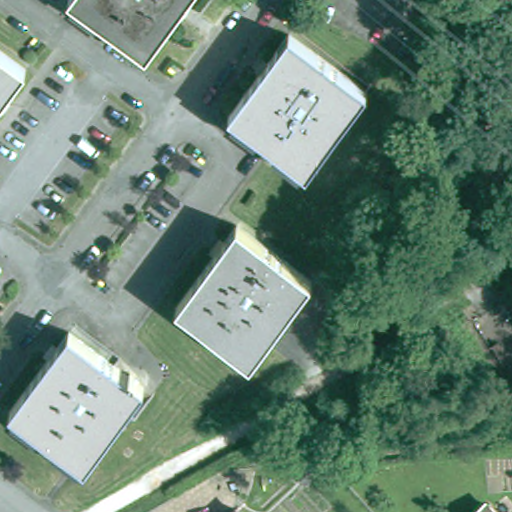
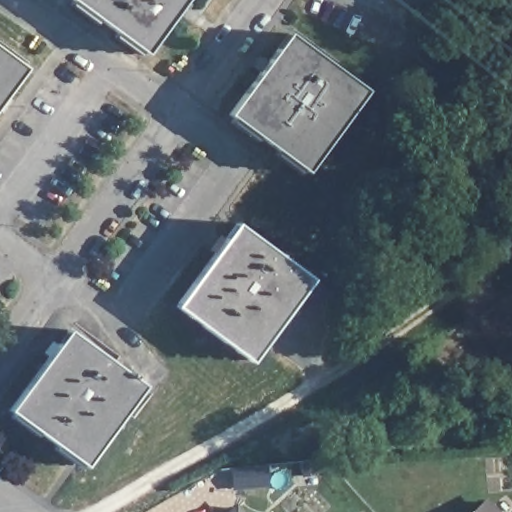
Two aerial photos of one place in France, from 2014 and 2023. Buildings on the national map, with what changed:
unchanged [(81,0),(182,0),(148,51),(81,0)]
unchanged [(231,109),(288,26),(366,84),(311,171),(231,109)]
unchanged [(0,97),(0,53),(19,67),(0,97)]
unchanged [(238,224),(311,281),(251,360),(183,302),(238,224)]
unchanged [(89,464),(14,409),(69,330),(143,384),(89,464)]
unchanged [(483,499),(495,512),(468,512),(483,499)]
unchanged [(234,506),(241,512),(226,512),(234,506)]

